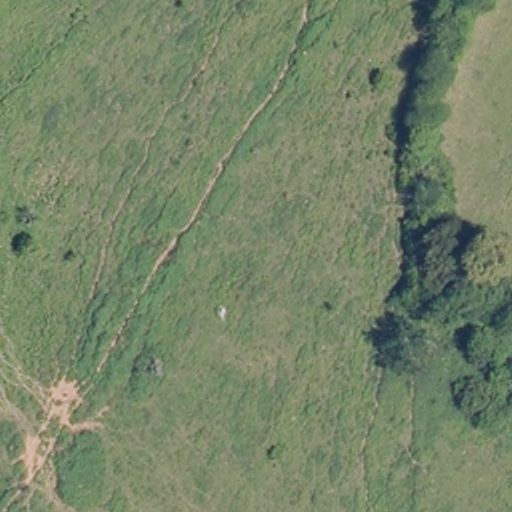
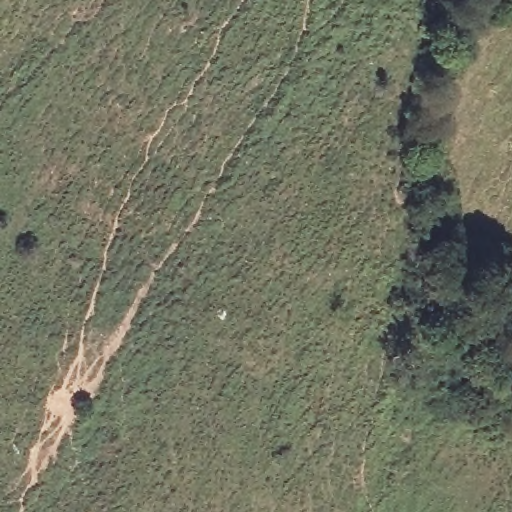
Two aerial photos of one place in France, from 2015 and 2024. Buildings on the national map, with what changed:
unchanged [(502,251),(486,239),(495,225),(512,235),(512,237),(502,251)]

